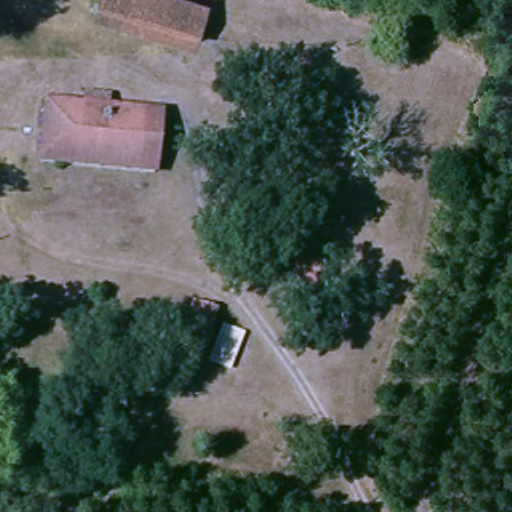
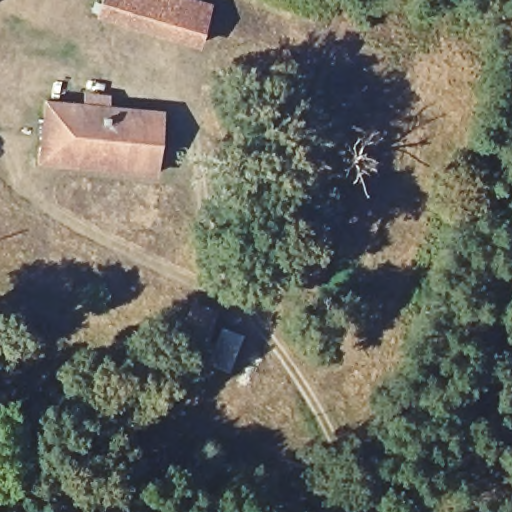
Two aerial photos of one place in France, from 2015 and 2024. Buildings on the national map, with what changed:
unchanged [(116,22),(119,0),(196,0),(190,36),(116,22)]
unchanged [(159,109),(157,170),(38,164),(43,100),(159,109)]
unchanged [(190,336),(168,327),(178,305),(198,314),(190,336)]

